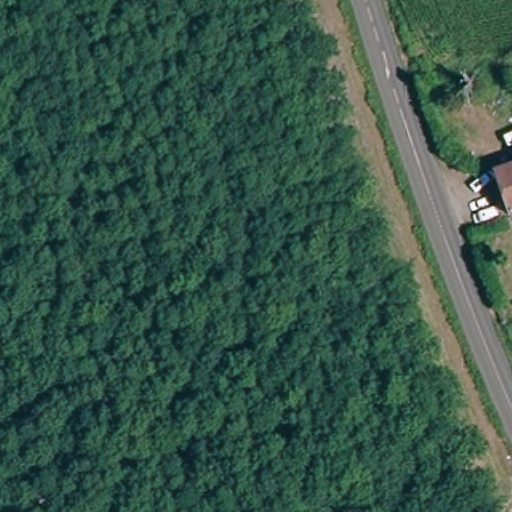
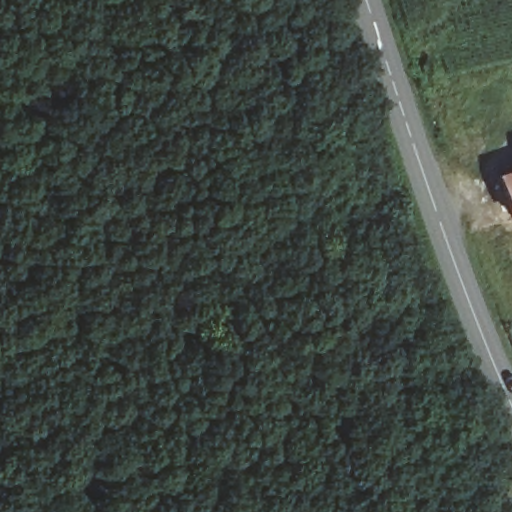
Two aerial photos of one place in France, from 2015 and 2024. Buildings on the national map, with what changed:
unchanged [(417,21),(421,33),(410,36),(407,25),(417,21)]
unchanged [(496,179),(512,173),(512,219),(509,220),(496,179)]

